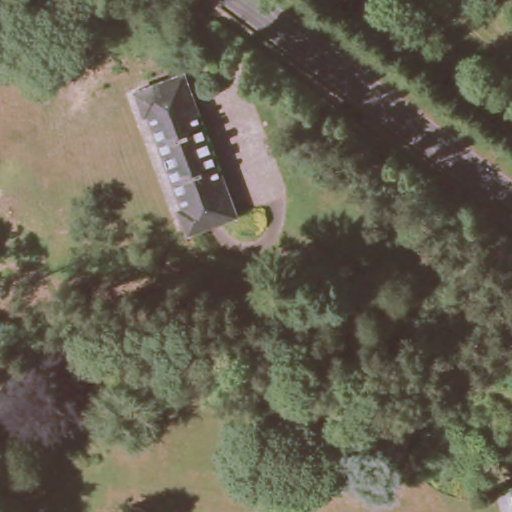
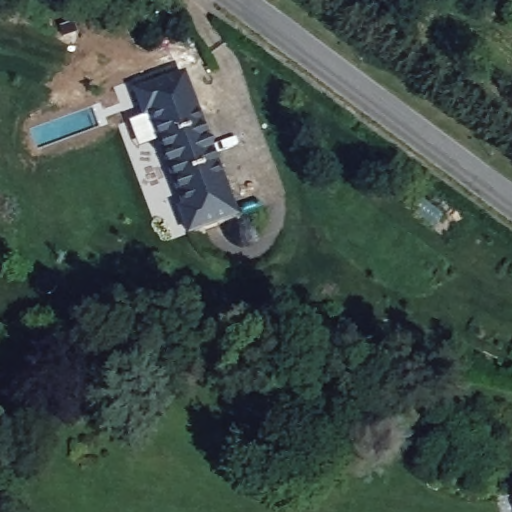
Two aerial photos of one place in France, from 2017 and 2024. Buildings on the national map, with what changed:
unchanged [(232,216),(185,233),(175,210),(180,209),(145,114),(140,115),(130,91),(155,82),(178,74),(185,91),(232,216)]

